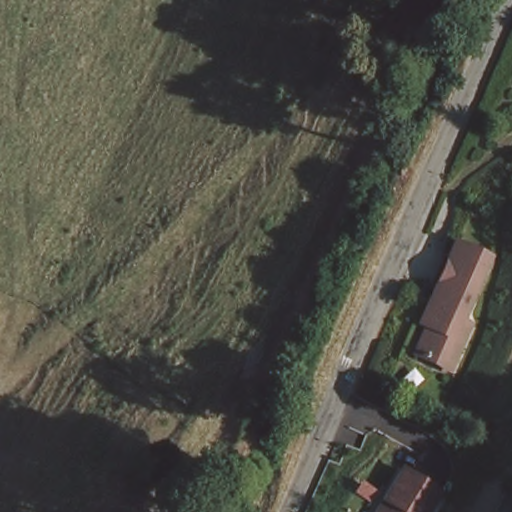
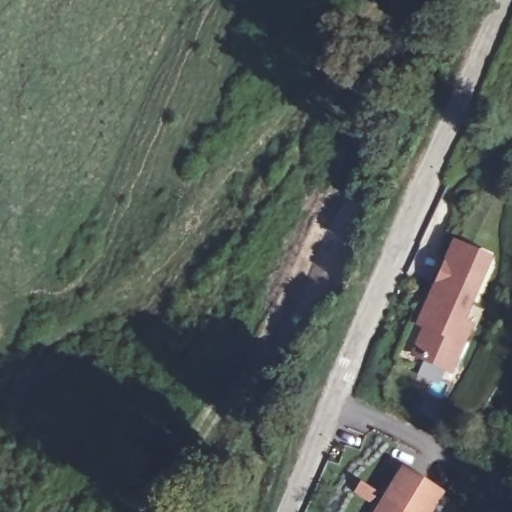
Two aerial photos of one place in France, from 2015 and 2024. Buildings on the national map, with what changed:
unchanged [(427,325),(422,323),(438,288),(435,287),(449,258),(451,259),(457,244),(489,258),(461,322),(470,325),(451,368),(422,356),(415,352),(427,325)]
unchanged [(389,510),(394,502),(390,500),(409,469),(446,492),(434,512),(383,512),(385,508),(389,510)]

